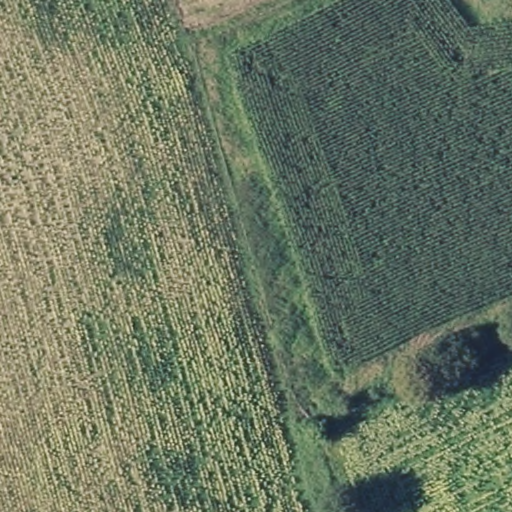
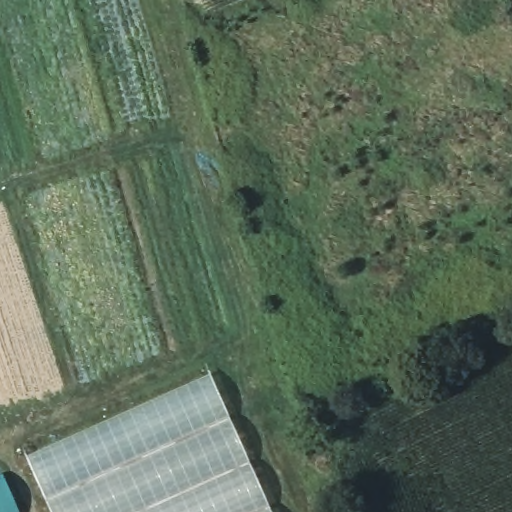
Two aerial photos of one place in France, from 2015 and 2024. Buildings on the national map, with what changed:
new [(210,374),(237,434),(272,512),(51,512),(26,456),(210,374)]
new [(19,512),(0,512),(0,476),(4,475),(19,512)]

